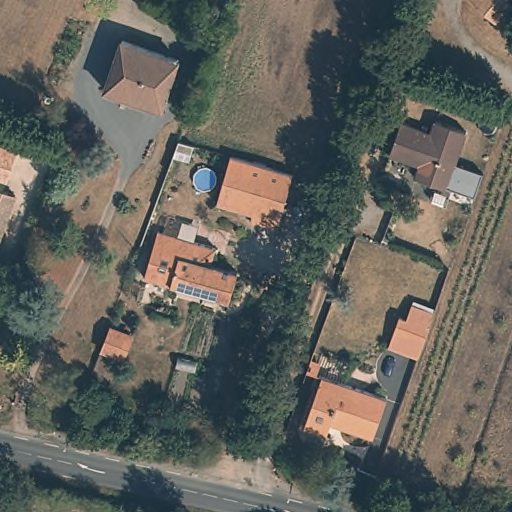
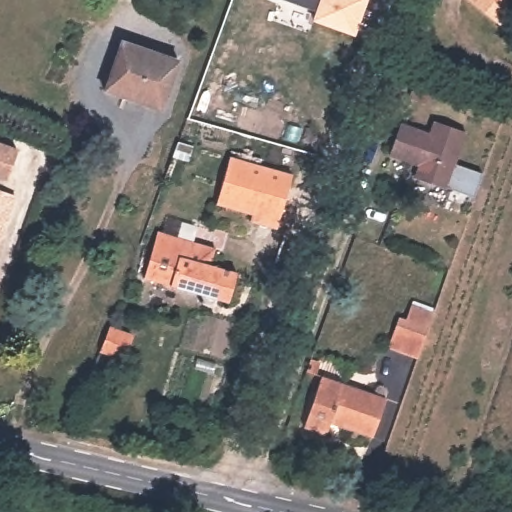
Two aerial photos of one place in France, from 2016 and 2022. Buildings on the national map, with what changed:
new [(316,11),(287,0),(367,0),(357,37),(312,22),(316,11)]
unchanged [(510,4),(512,6),(512,13),(502,26),(472,0),(512,0),(512,1),(510,4)]
unchanged [(180,59),(165,111),(147,107),(149,99),(110,89),(122,43),(180,59)]
unchanged [(401,124),(433,134),(438,122),(470,130),(452,189),(421,180),(425,166),(392,157),(401,124)]
unchanged [(8,176),(0,173),(0,141),(19,148),(8,176)]
unchanged [(255,219),(257,208),(221,195),(239,150),(261,157),(300,172),(287,205),(278,227),(255,219)]
unchanged [(0,245),(0,187),(17,194),(0,245)]
unchanged [(218,245),(214,260),(244,269),(232,300),(149,272),(163,227),(218,245)]
unchanged [(390,349),(400,320),(408,322),(413,309),(435,313),(420,360),(390,349)]
unchanged [(388,395),(375,436),(331,422),(328,432),(307,427),(323,377),(388,395)]

